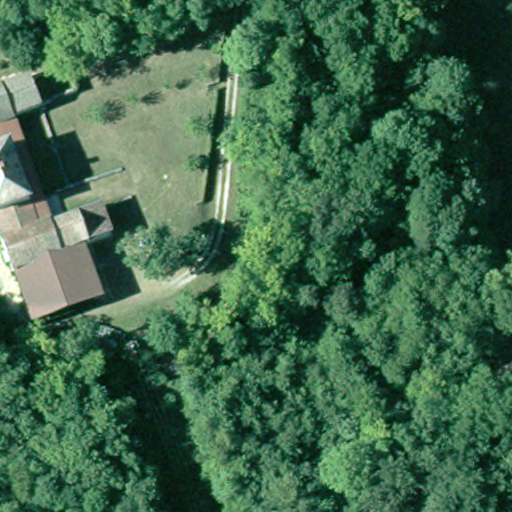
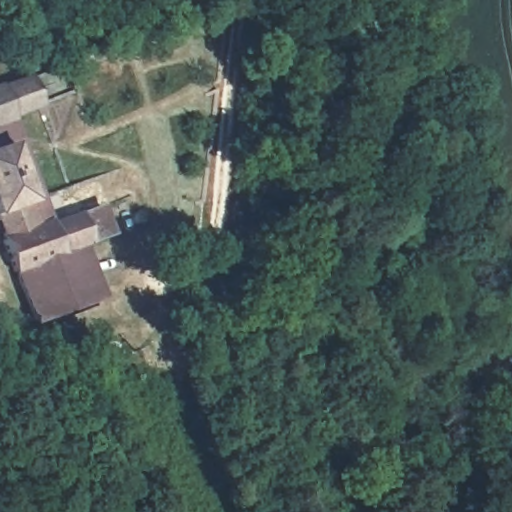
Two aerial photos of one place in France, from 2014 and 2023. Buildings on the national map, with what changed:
unchanged [(26,80),(35,107),(0,119),(0,87),(0,88),(26,80)]
unchanged [(19,298),(0,240),(0,119),(35,227),(47,224),(48,227),(96,211),(105,237),(75,247),(93,300),(27,321),(25,317),(17,319),(11,301),(19,298)]

